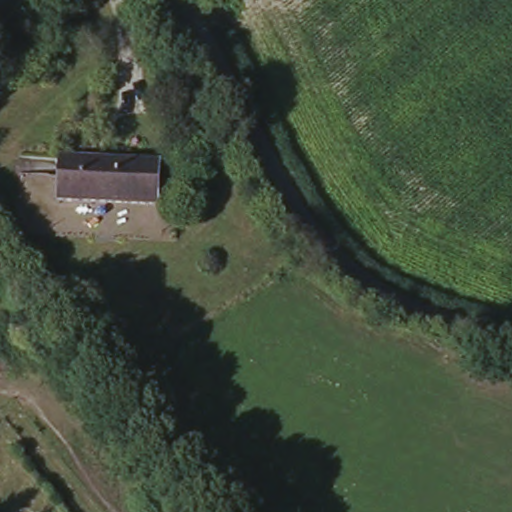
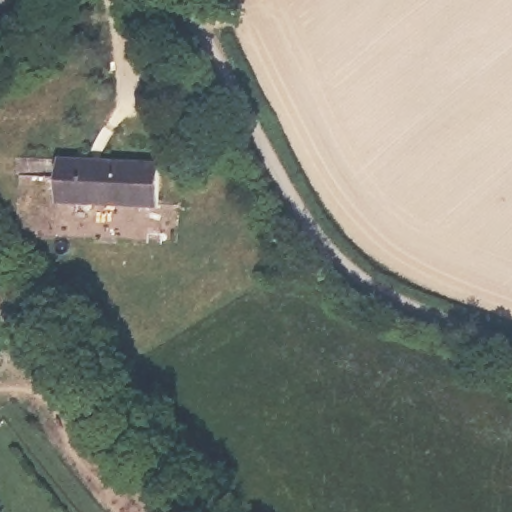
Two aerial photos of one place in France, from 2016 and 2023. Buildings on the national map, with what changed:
unchanged [(48,11),(42,0),(66,0),(48,11)]
unchanged [(157,199),(57,201),(57,160),(156,158),(157,199)]

